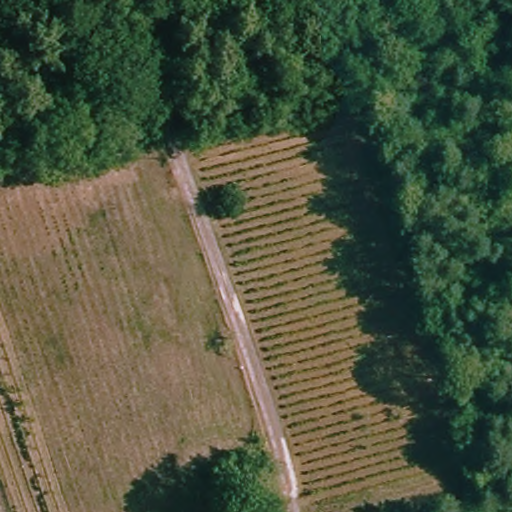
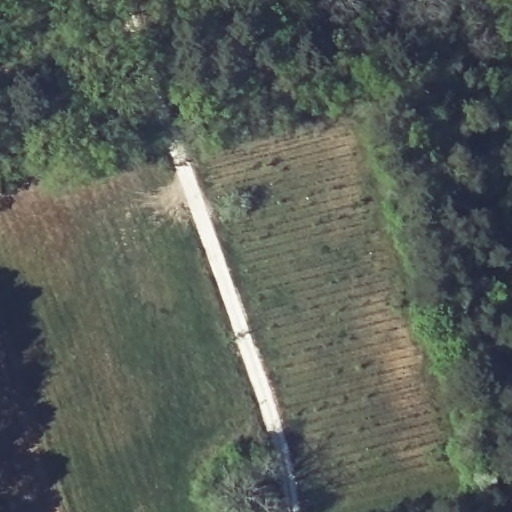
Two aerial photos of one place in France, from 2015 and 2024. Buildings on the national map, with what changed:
[]

